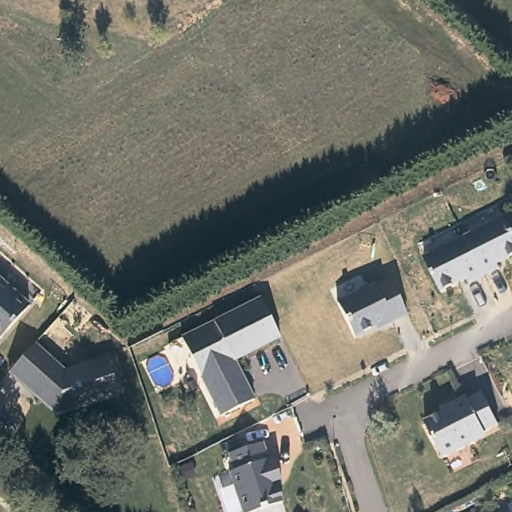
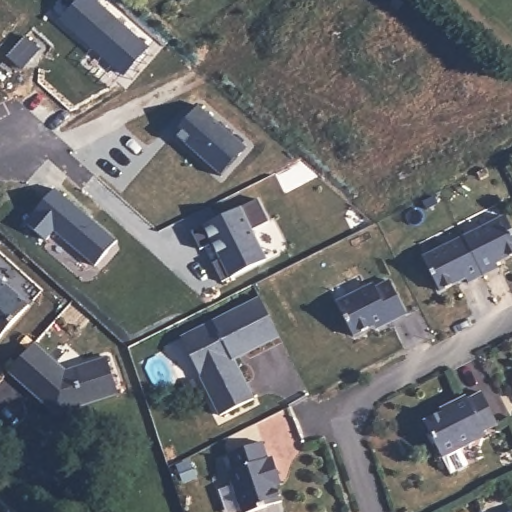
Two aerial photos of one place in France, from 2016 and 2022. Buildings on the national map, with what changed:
new [(60,19),(76,0),(94,0),(147,46),(122,75),(60,19)]
new [(222,171),(175,133),(199,105),(245,145),(222,171)]
new [(54,227),(45,239),(25,221),(53,188),(115,240),(95,263),(54,227)]
new [(221,280),(214,264),(219,261),(211,242),(199,249),(191,234),(256,199),(268,220),(252,230),(266,258),(221,280)]
unchanged [(512,229),(512,256),(497,263),(499,268),(484,276),(465,237),(505,216),(512,229)]
unchanged [(465,237),(484,276),(468,283),(466,279),(440,292),(423,258),(465,237)]
unchanged [(0,337),(0,275),(30,305),(0,337)]
unchanged [(374,285),(376,288),(390,281),(406,315),(391,322),(390,318),(353,336),(336,303),(374,285)]
unchanged [(260,298),(280,337),(234,360),(254,400),(221,416),(181,338),(260,298)]
unchanged [(67,368),(108,355),(120,392),(57,415),(8,370),(36,339),(67,368)]
unchanged [(454,408),(452,405),(467,397),(469,400),(482,393),(499,426),(473,438),(476,443),(444,460),(425,422),(454,408)]
unchanged [(270,460),(275,458),(280,475),(275,476),(283,502),(251,512),(243,512),(230,471),(235,470),(230,453),(265,442),(270,460)]

